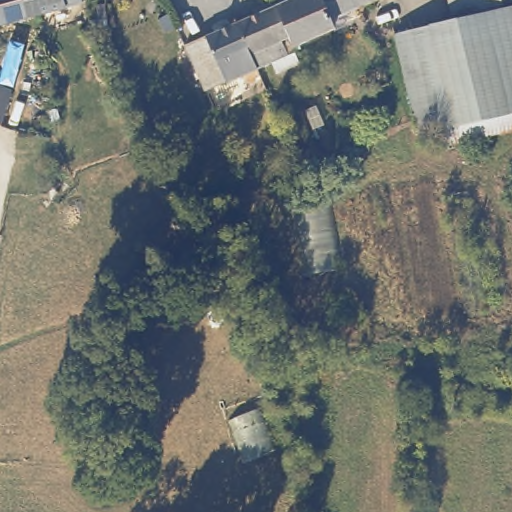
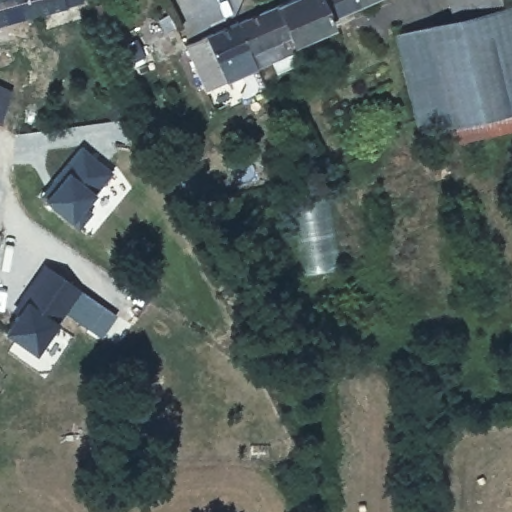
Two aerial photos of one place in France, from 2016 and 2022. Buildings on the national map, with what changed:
unchanged [(0,25),(0,0),(85,0),(86,8),(0,25)]
unchanged [(374,0),(330,20),(334,27),(293,45),(300,64),(284,69),(280,61),(263,68),(244,20),(290,0),(374,0)]
unchanged [(456,26),(449,0),(502,0),(505,15),(456,26)]
unchanged [(456,26),(505,15),(512,13),(512,114),(434,134),(422,136),(399,39),(456,26)]
unchanged [(204,91),(184,46),(193,42),(244,20),(263,68),(226,85),(211,91),(210,88),(204,91)]
unchanged [(1,127),(0,126),(0,89),(10,94),(1,127)]
unchanged [(512,114),(512,133),(439,151),(434,134),(512,114)]
new [(82,205),(90,212),(78,227),(38,195),(80,146),(111,172),(82,205)]
unchanged [(334,195),(345,267),(301,274),(292,204),(334,195)]
new [(27,306),(23,303),(46,268),(81,292),(38,356),(8,336),(27,306)]

